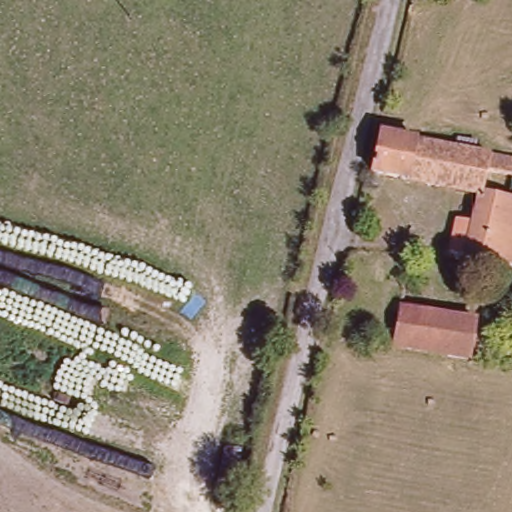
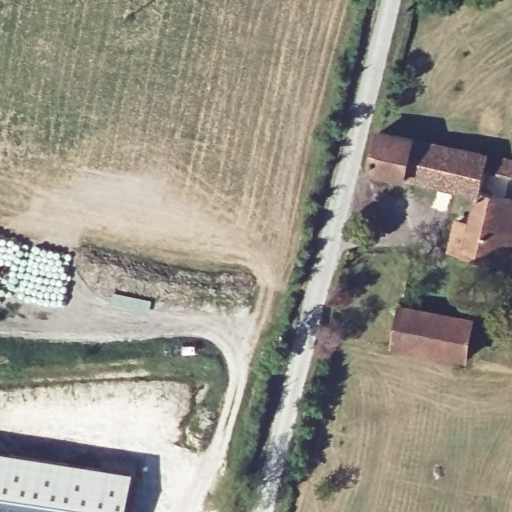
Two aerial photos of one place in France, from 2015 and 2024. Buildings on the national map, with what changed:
unchanged [(419,30),(415,41),(405,39),(408,28),(419,30)]
unchanged [(512,171),(511,174),(485,169),(480,194),(512,201),(512,260),(511,265),(452,254),(457,231),(466,232),(472,192),(367,169),(376,131),(512,161),(512,171)]
unchanged [(401,307),(475,319),(470,357),(396,344),(401,307)]
new [(134,472),(128,512),(0,512),(0,451),(134,472)]

